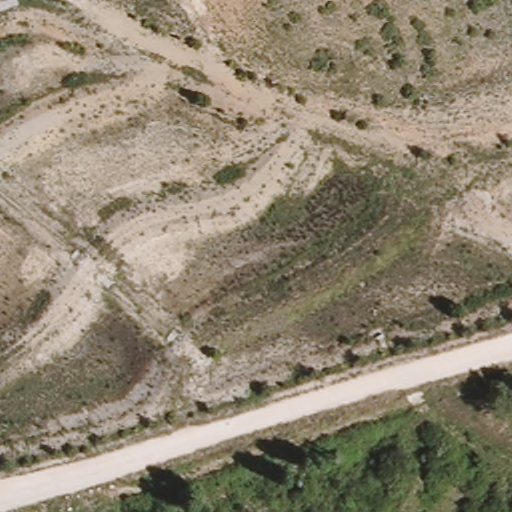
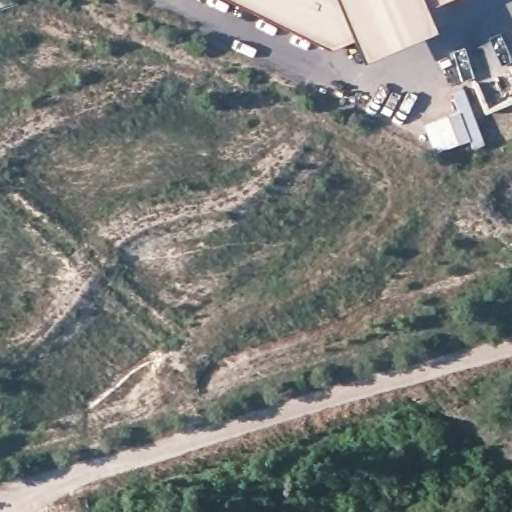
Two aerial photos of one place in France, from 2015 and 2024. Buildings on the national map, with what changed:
new [(425,7),(433,31),(360,59),(351,37),(326,46),(229,0),(441,0),(425,7)]
new [(451,92),(462,88),(481,142),(471,146),(468,139),(433,151),(423,124),(458,111),(451,92)]

